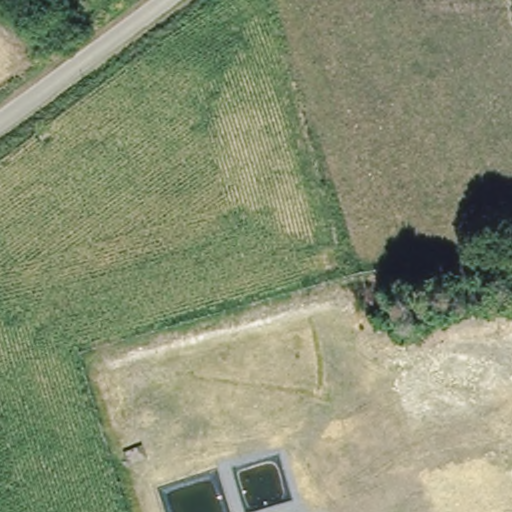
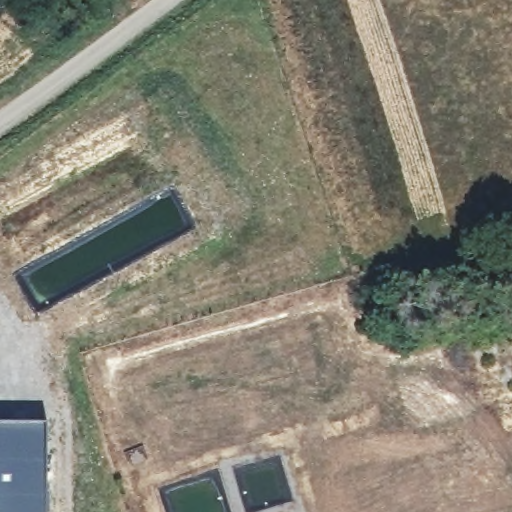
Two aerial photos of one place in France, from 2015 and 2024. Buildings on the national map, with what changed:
new [(0,512),(0,421),(46,422),(46,512),(0,512)]

